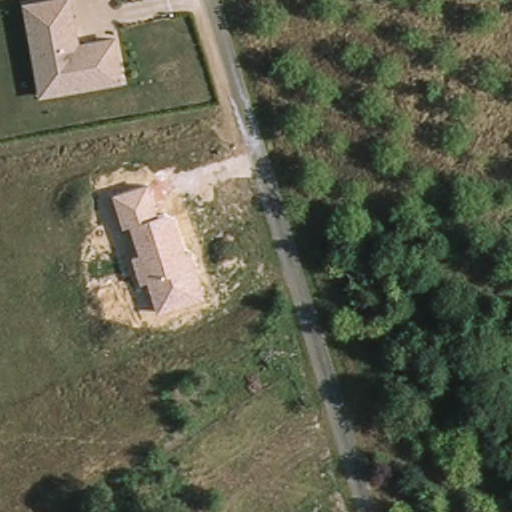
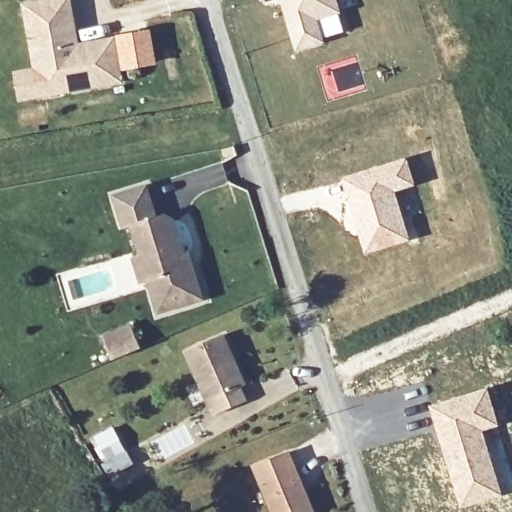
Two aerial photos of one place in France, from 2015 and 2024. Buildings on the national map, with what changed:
unchanged [(24,1),(34,0),(73,0),(80,39),(117,34),(126,86),(41,100),(24,1)]
new [(284,0),(338,0),(342,12),(319,20),(325,42),(299,49),(284,0)]
new [(357,60),(365,86),(337,93),(330,69),(357,60)]
new [(408,156),(417,186),(397,193),(412,240),(364,254),(358,235),(349,214),(338,178),(408,156)]
unchanged [(149,185),(158,218),(173,214),(185,253),(190,250),(204,297),(156,312),(148,283),(141,285),(132,257),(139,254),(130,226),(124,229),(114,194),(149,185)]
new [(131,325),(141,348),(113,360),(103,337),(131,325)]
new [(246,385),(206,403),(183,351),(226,333),(246,385)]
new [(489,387),(500,427),(485,432),(504,495),(460,507),(428,404),(489,387)]
new [(304,491),(312,512),(273,512),(254,465),(288,451),(300,480),(304,491)]
new [(126,453),(141,480),(117,494),(101,468),(126,453)]
unchanged [(92,512),(80,512),(88,506),(92,512)]

